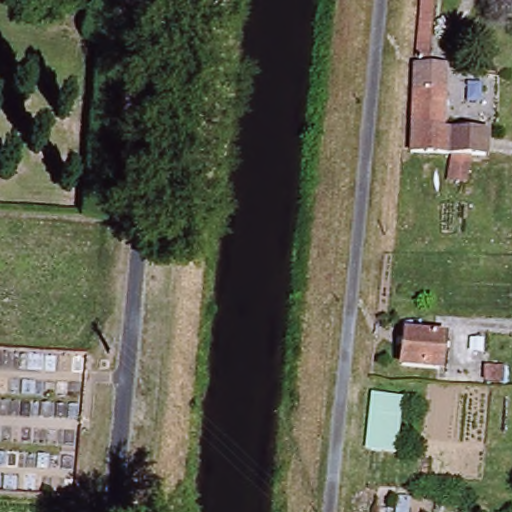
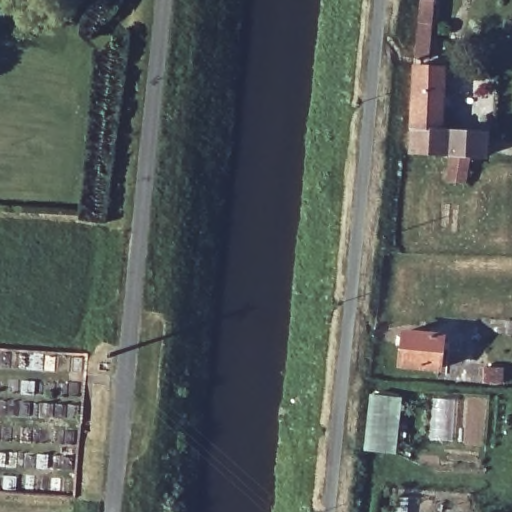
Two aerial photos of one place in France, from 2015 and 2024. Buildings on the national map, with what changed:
unchanged [(419,0),(436,0),(431,66),(415,65),(419,0)]
unchanged [(410,113),(415,65),(431,66),(446,66),(443,115),(410,113)]
unchanged [(406,151),(410,113),(443,115),(441,131),(451,131),(448,155),(406,151)]
unchanged [(472,158),(469,187),(445,185),(448,155),(451,131),(484,135),(484,156),(472,158)]
unchanged [(403,332),(447,336),(444,371),(401,367),(403,332)]
unchanged [(396,455),(363,452),(369,393),(401,395),(396,455)]

